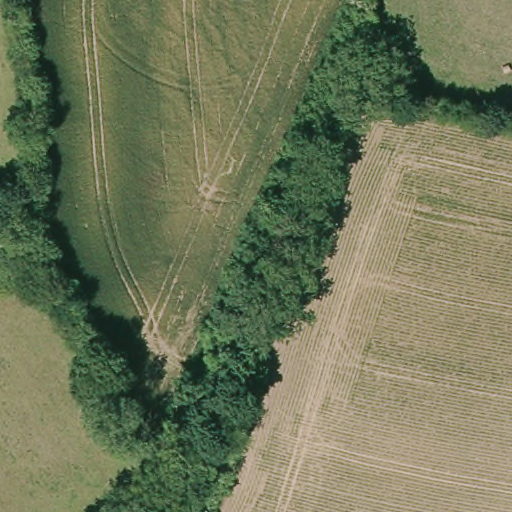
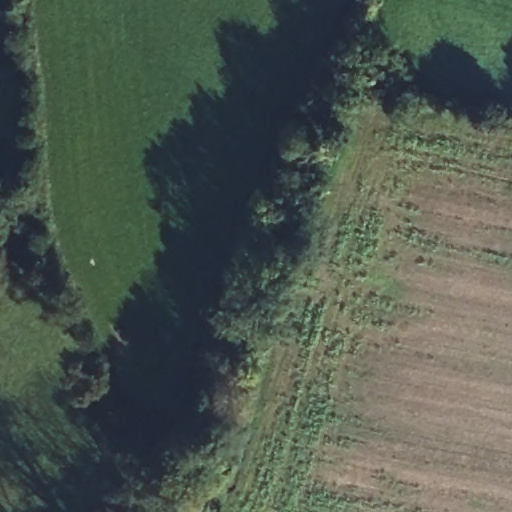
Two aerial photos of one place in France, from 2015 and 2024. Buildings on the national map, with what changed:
[]

